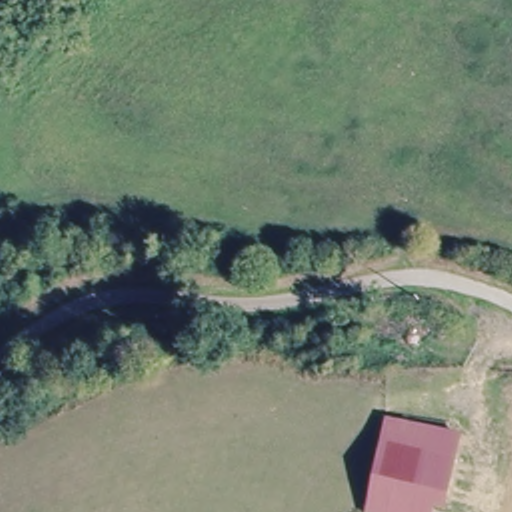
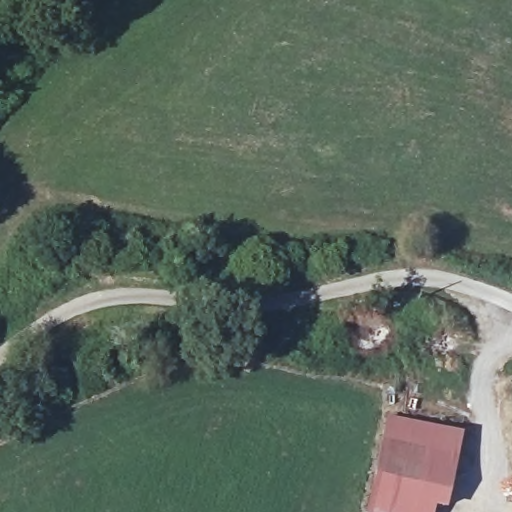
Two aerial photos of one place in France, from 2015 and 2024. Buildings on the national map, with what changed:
unchanged [(384,415),(456,427),(441,494),(429,491),(369,481),(384,415)]
unchanged [(369,481),(429,491),(424,512),(414,512),(361,502),(369,481)]

